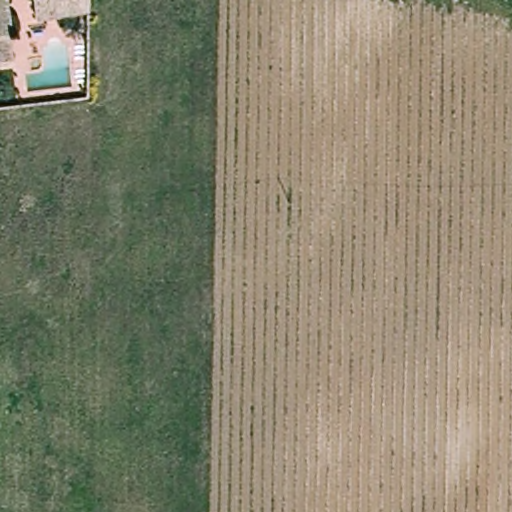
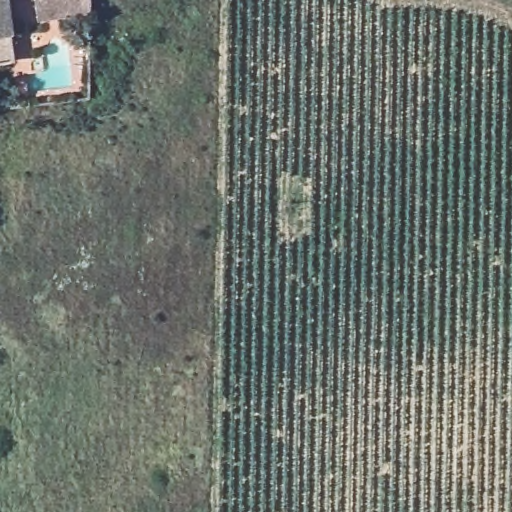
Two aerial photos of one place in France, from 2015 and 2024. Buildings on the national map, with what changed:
unchanged [(0,0),(7,0),(12,30),(15,61),(0,63),(0,0)]
unchanged [(41,21),(38,0),(91,0),(93,15),(41,21)]

